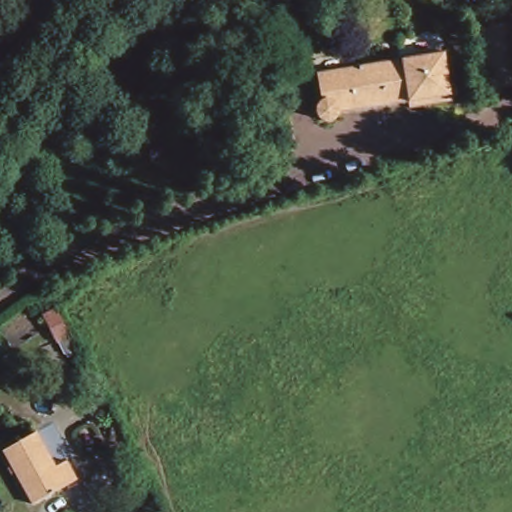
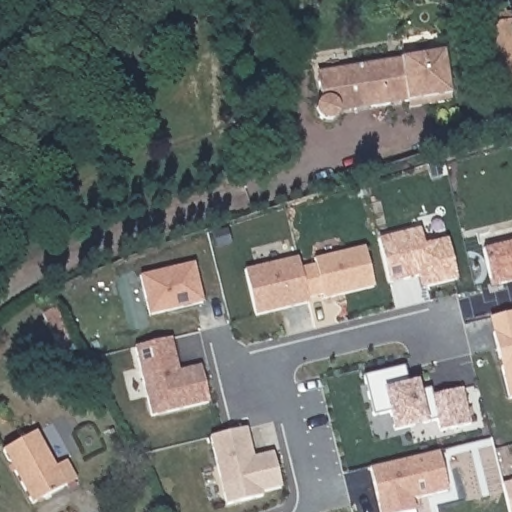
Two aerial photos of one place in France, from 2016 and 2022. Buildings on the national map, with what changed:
unchanged [(512,72),(505,74),(494,12),(512,9),(512,72)]
unchanged [(399,59),(434,51),(444,104),(425,107),(423,99),(404,103),(396,59),(399,59)]
unchanged [(332,117),(330,122),(323,125),(316,122),(312,116),(311,108),(315,103),(321,101),(316,75),(396,59),(404,103),(402,103),(332,117)]
new [(417,273),(388,280),(377,236),(419,226),(423,242),(447,236),(456,277),(426,284),(420,285),(417,273)]
new [(484,247),(512,240),(512,279),(501,282),(493,284),(491,276),(484,247)]
new [(313,261),(312,256),(363,244),(373,284),(321,296),(320,291),(306,294),(299,265),(313,261)]
new [(296,254),(299,265),(306,294),(307,299),(253,312),(243,267),(296,254)]
new [(191,260),(200,299),(146,311),(137,273),(191,260)]
unchanged [(53,306),(66,331),(53,337),(40,312),(53,306)]
new [(494,330),(512,326),(512,395),(508,396),(500,364),(499,357),(493,330),(494,330)]
new [(172,353),(175,367),(197,362),(206,399),(148,413),(131,343),(168,335),(172,353)]
new [(403,365),(407,383),(415,381),(417,390),(429,387),(431,394),(461,387),(469,422),(439,430),(436,418),(393,428),(389,410),(372,414),(362,374),(403,365)]
new [(248,444),(250,455),(270,450),(278,485),(258,490),(259,494),(223,502),(207,434),(243,426),(248,444)]
unchanged [(34,433),(54,467),(65,461),(75,480),(32,505),(1,452),(34,433)]
new [(367,466),(437,450),(446,489),(410,498),(413,509),(401,512),(378,512),(376,502),(374,495),(367,466)]
new [(501,484),(512,481),(512,512),(508,512),(501,484)]

